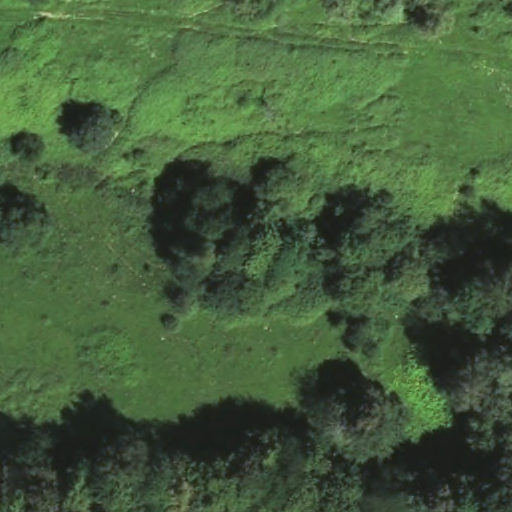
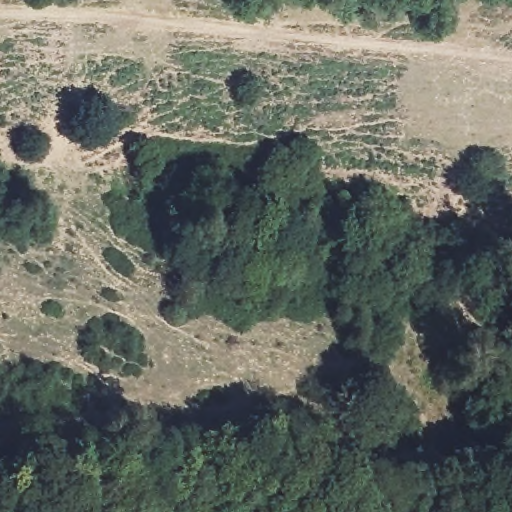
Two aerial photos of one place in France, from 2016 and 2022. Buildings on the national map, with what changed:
[]

